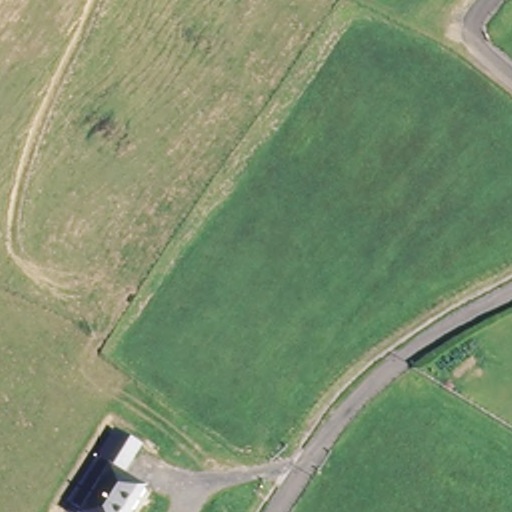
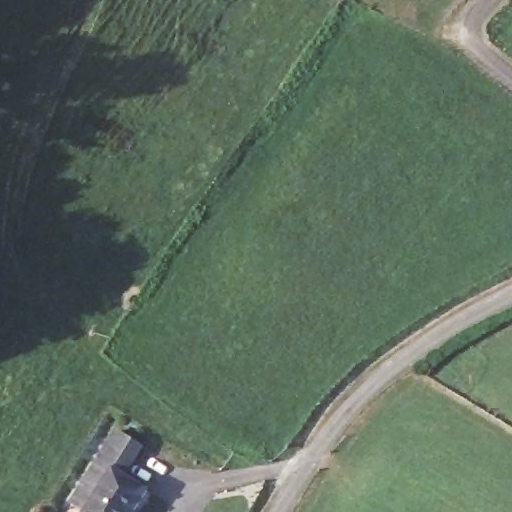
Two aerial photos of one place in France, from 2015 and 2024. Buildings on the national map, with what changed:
unchanged [(144,446),(127,476),(149,491),(135,512),(81,512),(82,510),(69,502),(115,428),(144,446)]

